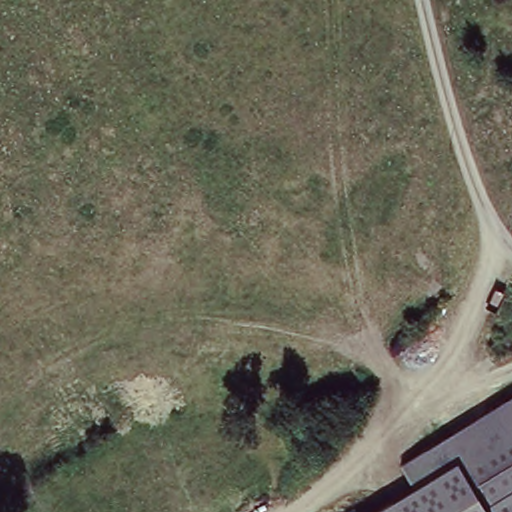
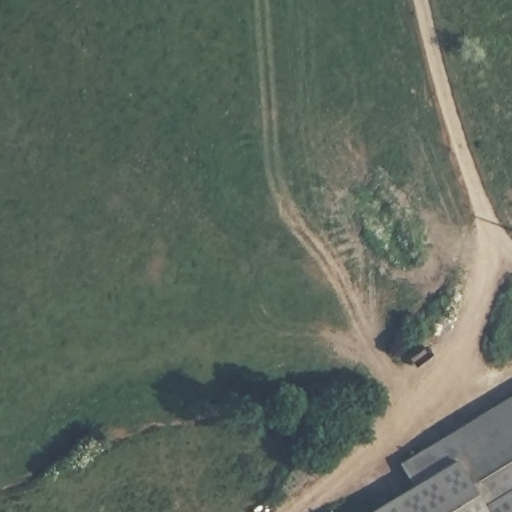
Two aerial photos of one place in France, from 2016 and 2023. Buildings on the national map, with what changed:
unchanged [(437,442),(512,397),(512,512),(424,512),(412,491),(400,465),(437,442)]
unchanged [(412,491),(424,512),(377,512),(412,491)]

